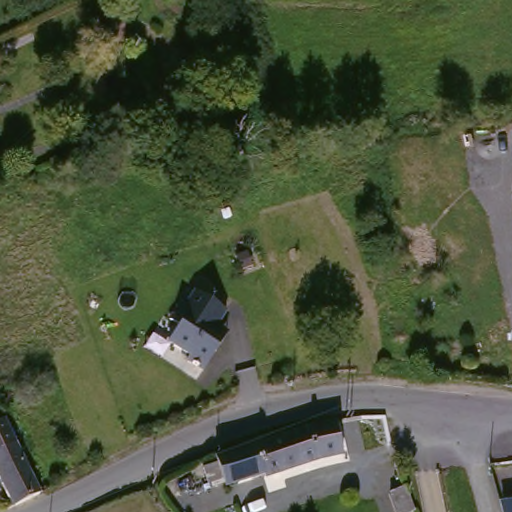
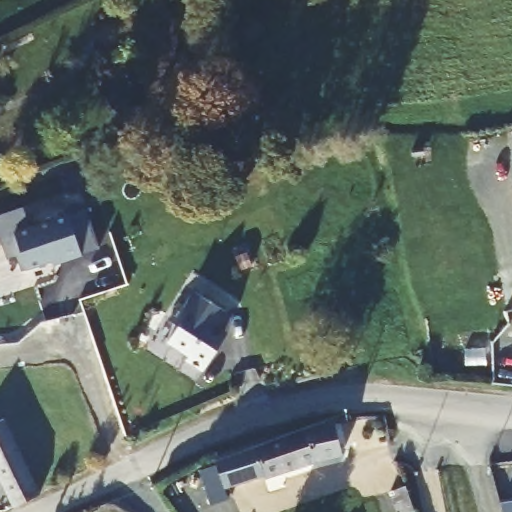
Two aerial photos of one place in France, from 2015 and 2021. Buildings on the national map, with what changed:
new [(20,208),(27,229),(83,211),(96,250),(59,262),(58,258),(20,270),(15,255),(6,258),(0,238),(0,214),(20,208)]
unchanged [(179,322),(170,316),(181,299),(186,302),(195,287),(227,307),(217,322),(224,326),(217,338),(221,341),(204,366),(188,356),(191,352),(169,338),(179,322)]
demolished [(431,371),(424,339),(428,338),(427,328),(444,324),(445,334),(449,333),(455,366),(431,371)]
unchanged [(264,476),(222,487),(214,457),(279,438),(334,423),(342,456),(265,478),(264,476)]
unchanged [(16,466),(30,495),(3,507),(0,501),(0,433),(16,466)]
unchanged [(414,512),(398,512),(391,492),(405,488),(414,512)]
new [(512,512),(501,512),(499,507),(512,506),(512,512)]

